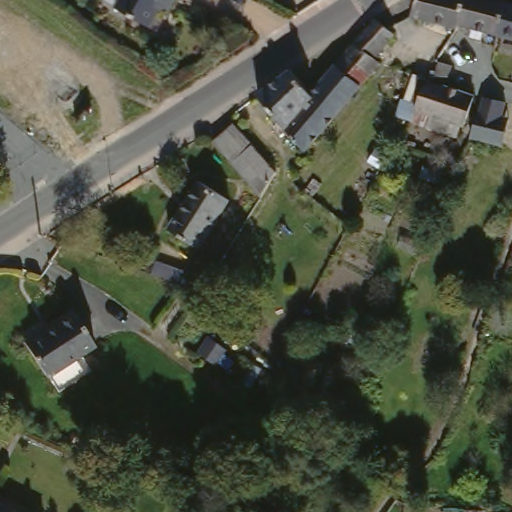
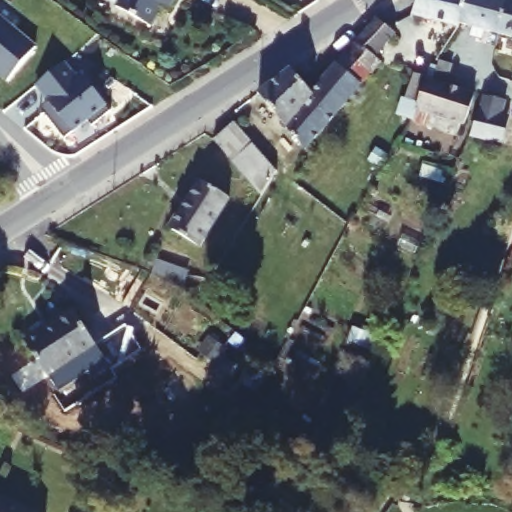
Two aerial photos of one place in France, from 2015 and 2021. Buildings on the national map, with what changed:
unchanged [(154,29),(120,7),(110,0),(179,0),(171,14),(165,10),(154,29)]
unchanged [(453,29),(412,15),(418,0),(462,0),(456,20),(453,29)]
unchanged [(491,30),(478,26),(476,34),(466,31),(468,23),(456,20),(462,0),(509,0),(512,1),(512,36),(491,30)]
unchanged [(7,80),(0,74),(0,17),(35,46),(7,80)]
unchanged [(388,27),(386,30),(395,40),(376,60),(382,65),(372,75),(370,78),(346,52),(381,19),(388,27)]
unchanged [(370,78),(300,146),(281,167),(272,155),(267,142),(286,122),(275,98),(266,85),(297,66),(310,88),(346,52),(370,78)]
unchanged [(437,58),(448,62),(446,85),(469,89),(457,134),(426,126),(428,112),(414,107),(416,103),(396,99),(395,71),(421,77),(425,79),(432,79),(437,58)]
new [(35,86),(64,64),(76,80),(81,75),(110,112),(92,127),(87,121),(64,140),(44,114),(40,109),(47,101),(35,86)]
unchanged [(496,96),(494,112),(473,108),(476,92),(496,96)]
unchanged [(508,122),(498,154),(470,147),(481,115),(508,122)]
unchanged [(276,172),(261,194),(216,148),(234,129),(276,172)]
unchanged [(227,207),(194,250),(166,226),(202,185),(227,207)]
unchanged [(175,251),(172,266),(145,261),(147,245),(175,251)]
unchanged [(40,327),(46,332),(70,314),(94,346),(83,354),(50,377),(22,340),(40,327)]
unchanged [(199,327),(214,339),(205,351),(190,340),(199,327)]
unchanged [(96,470),(122,483),(117,492),(92,479),(96,470)]
unchanged [(0,496),(29,512),(0,512),(0,496)]

